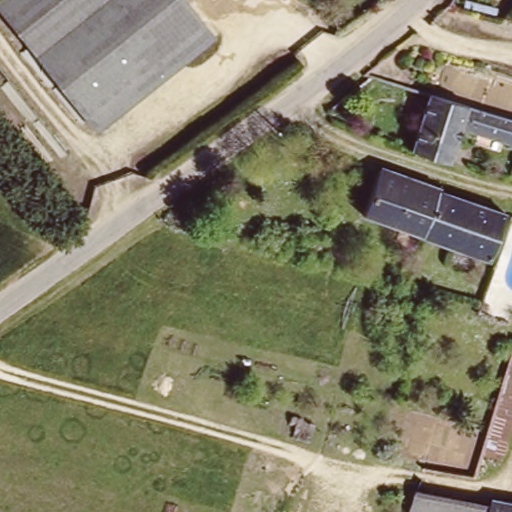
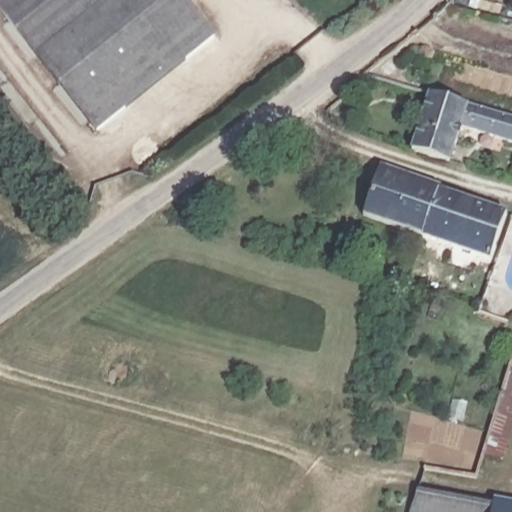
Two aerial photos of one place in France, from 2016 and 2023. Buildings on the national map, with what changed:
unchanged [(0,0),(193,0),(221,37),(102,127),(0,5),(0,0)]
unchanged [(428,91),(512,117),(512,143),(461,128),(450,164),(412,149),(428,91)]
unchanged [(425,236),(366,216),(382,171),(440,191),(425,236)]
unchanged [(443,192),(508,215),(493,260),(425,236),(440,191),(443,192)]
unchanged [(492,502),(490,512),(413,512),(420,490),(493,497),(492,502)]
unchanged [(493,497),(512,501),(512,512),(490,512),(492,502),(493,497)]

